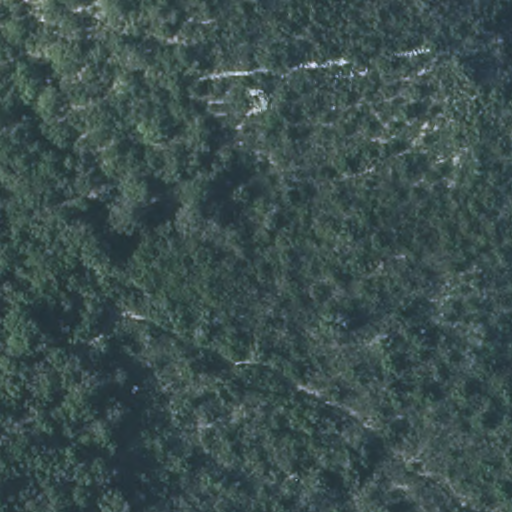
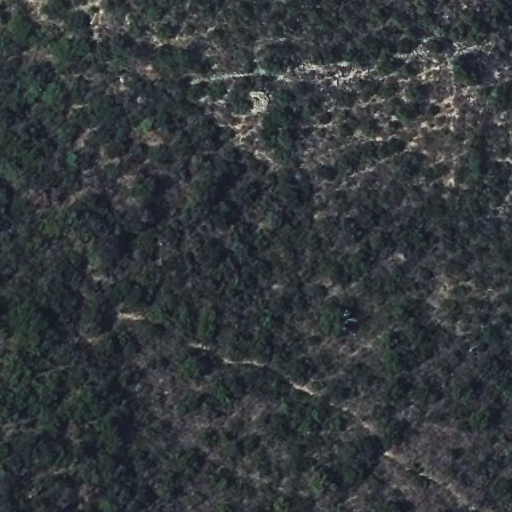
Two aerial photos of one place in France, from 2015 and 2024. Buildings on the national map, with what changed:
unchanged [(271,97),(271,113),(252,113),(253,95),(271,97)]

